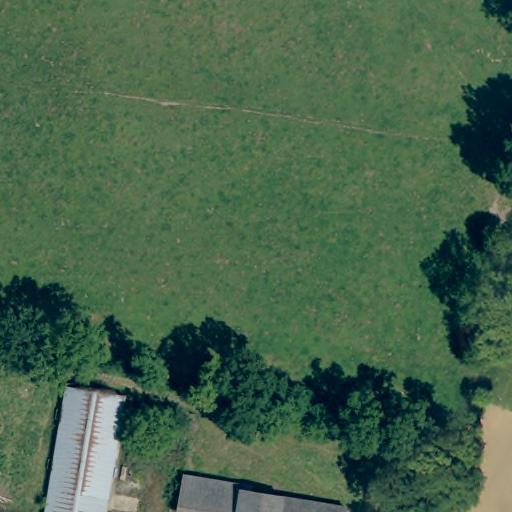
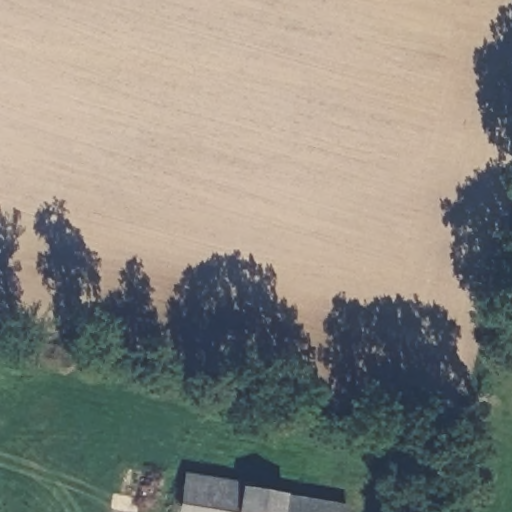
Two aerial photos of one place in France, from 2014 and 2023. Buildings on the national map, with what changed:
demolished [(73,387),(129,402),(103,512),(44,512),(73,387)]
unchanged [(185,465),(253,480),(252,483),(347,504),(346,512),(174,512),(185,465)]

